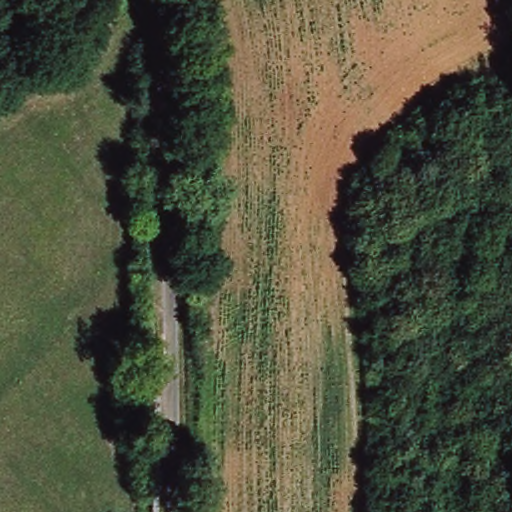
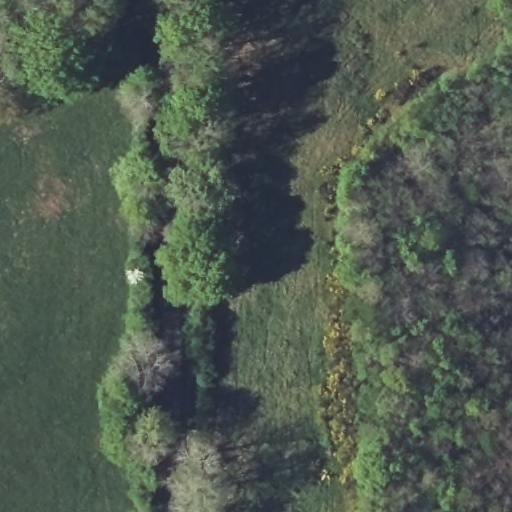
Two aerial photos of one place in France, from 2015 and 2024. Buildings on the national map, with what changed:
[]

